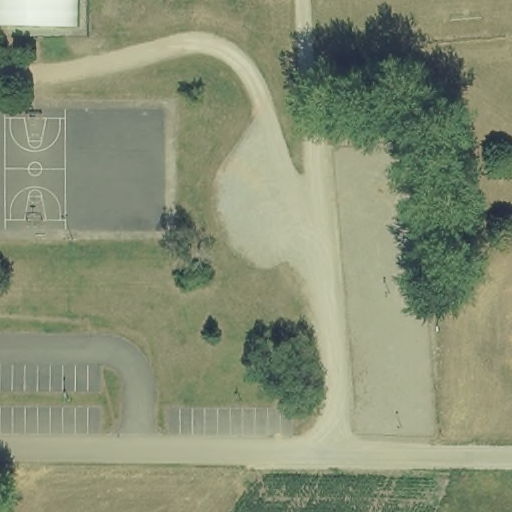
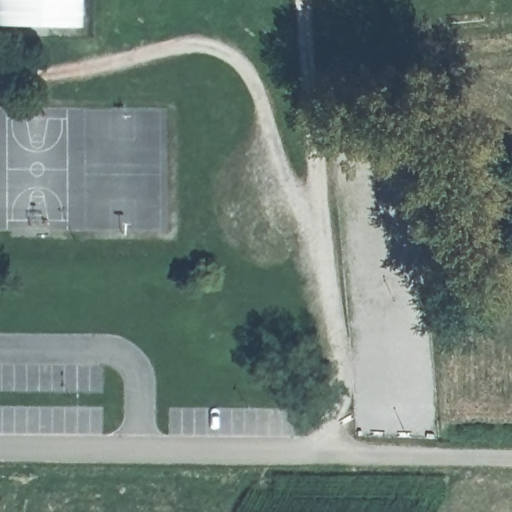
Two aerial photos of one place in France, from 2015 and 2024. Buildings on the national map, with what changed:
unchanged [(0,26),(0,0),(81,0),(81,24),(0,26)]

